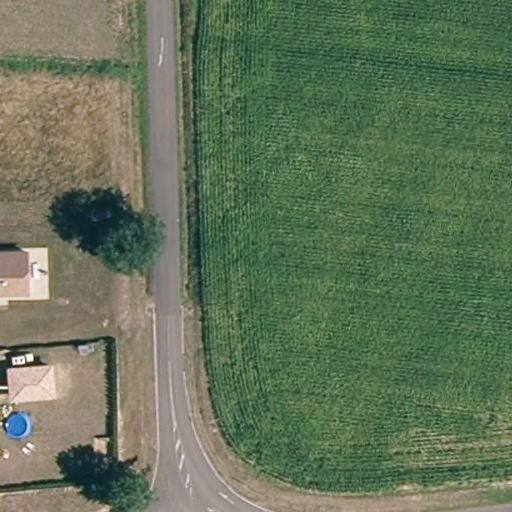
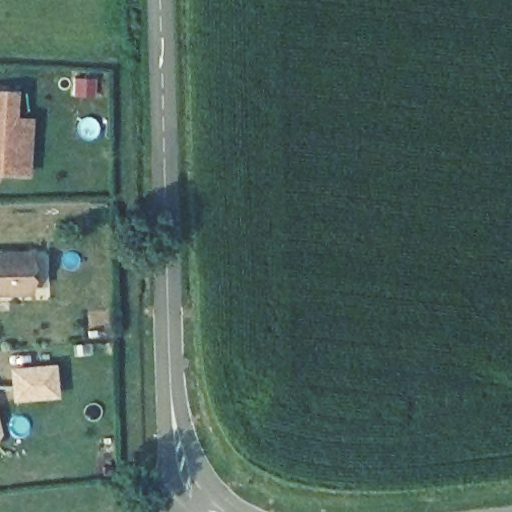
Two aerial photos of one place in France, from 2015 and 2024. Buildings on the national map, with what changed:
new [(29,178),(0,176),(0,90),(16,91),(15,117),(32,119),(29,178)]
unchanged [(30,249),(32,289),(0,290),(0,249),(30,249)]
unchanged [(6,367),(53,363),(55,398),(10,400),(6,367)]

